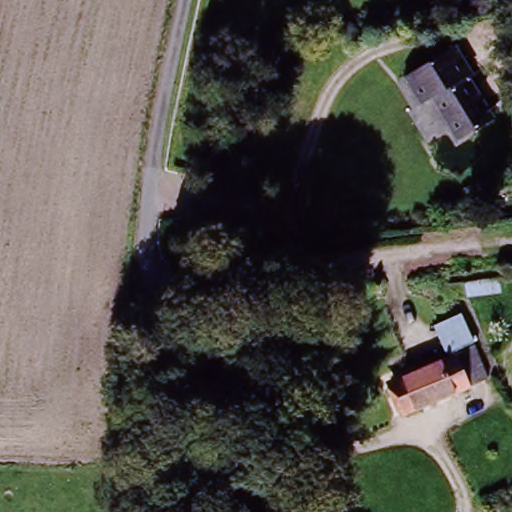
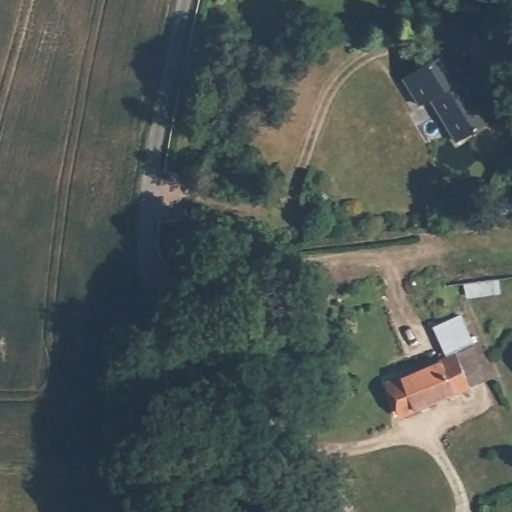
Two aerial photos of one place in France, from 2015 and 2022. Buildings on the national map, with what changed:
unchanged [(423,108),(405,76),(458,48),(477,84),(470,88),(492,130),(458,148),(440,113),(434,102),(423,108)]
unchanged [(438,324),(463,318),(469,342),(443,348),(438,324)]
unchanged [(508,352),(512,351),(512,361),(508,352)]
unchanged [(387,376),(473,353),(482,387),(399,410),(387,376)]

